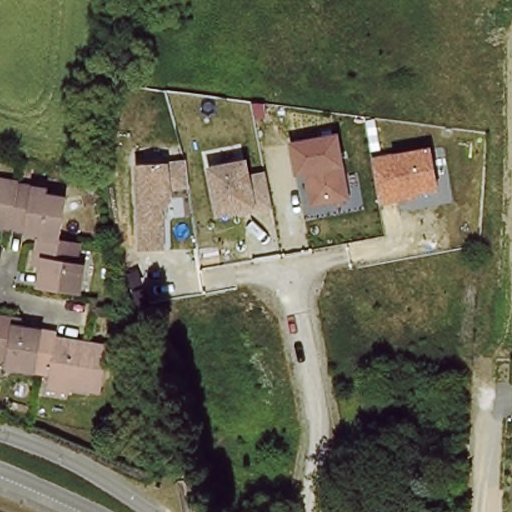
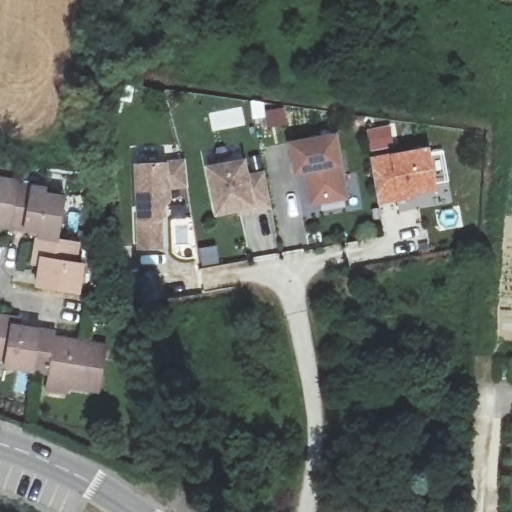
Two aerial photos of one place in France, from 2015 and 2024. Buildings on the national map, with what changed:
unchanged [(308,207),(300,174),(292,175),(286,141),(336,134),(342,166),(349,200),(308,207)]
unchanged [(390,154),(429,146),(439,191),(399,199),(379,203),(370,158),(390,154)]
unchanged [(137,250),(136,220),(132,162),(167,161),(187,160),(190,187),(170,189),(171,200),(163,206),(163,220),(163,249),(137,250)]
unchanged [(272,207),(256,210),(213,216),(204,166),(247,160),(249,172),(264,170),(272,207)]
unchanged [(0,228),(0,181),(17,183),(17,189),(9,229),(0,228)]
unchanged [(17,189),(51,194),(51,200),(65,202),(57,240),(42,240),(43,234),(9,229),(17,189)]
unchanged [(57,240),(86,247),(82,263),(90,266),(83,295),(40,288),(45,260),(38,258),(42,240),(57,240)]
unchanged [(33,368),(0,364),(0,314),(8,314),(7,322),(42,327),(33,368)]
unchanged [(42,327),(60,330),(59,337),(107,343),(97,384),(49,377),(50,368),(33,368),(42,327)]
unchanged [(337,512),(339,506),(377,512),(337,512)]

